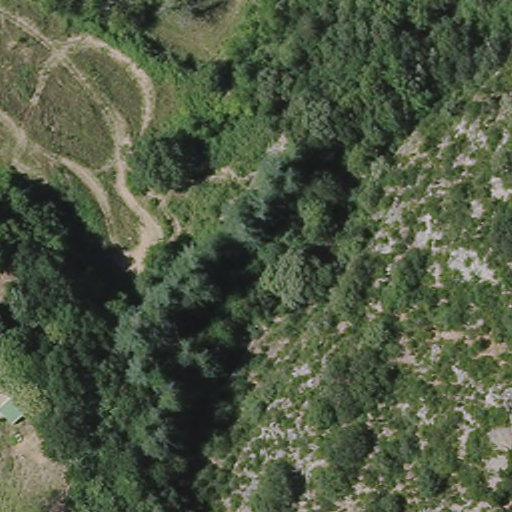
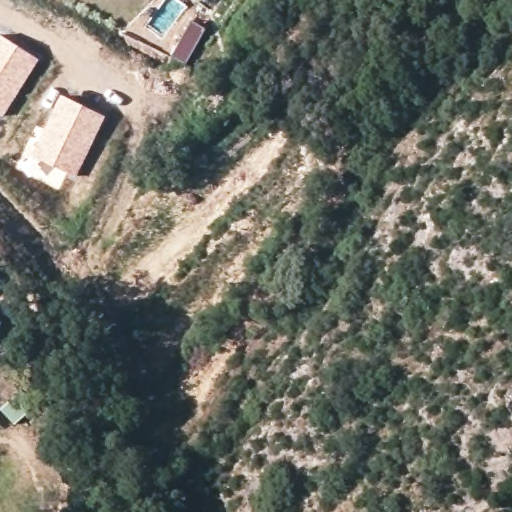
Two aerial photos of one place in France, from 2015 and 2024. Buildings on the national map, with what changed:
new [(3,116),(0,114),(0,33),(40,59),(3,116)]
new [(62,94),(107,115),(76,176),(30,155),(62,94)]

